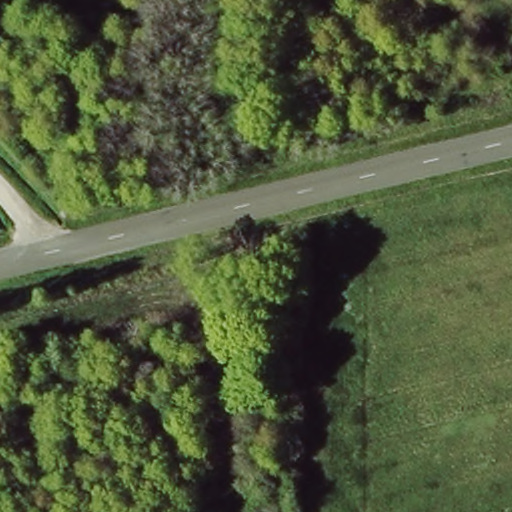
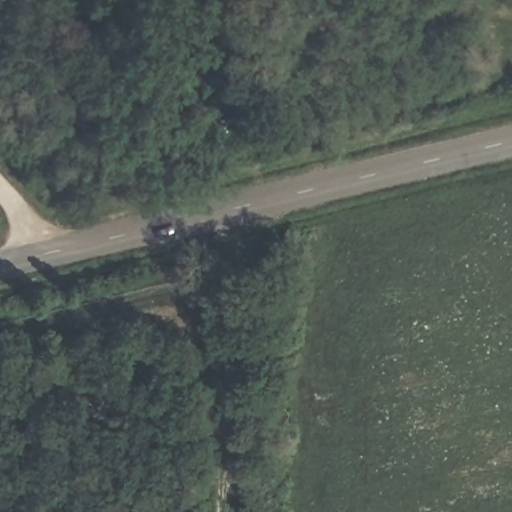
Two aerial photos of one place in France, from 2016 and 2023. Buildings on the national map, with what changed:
[]

